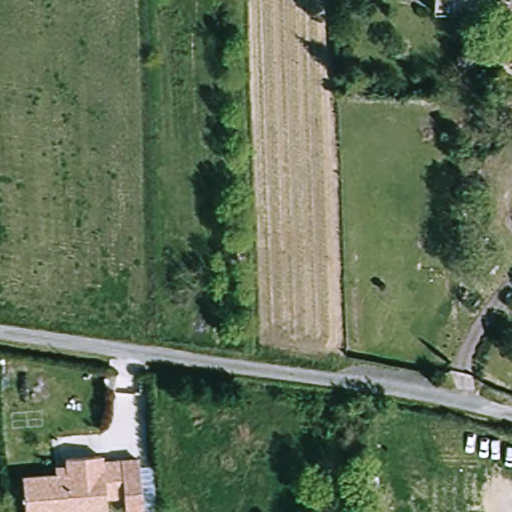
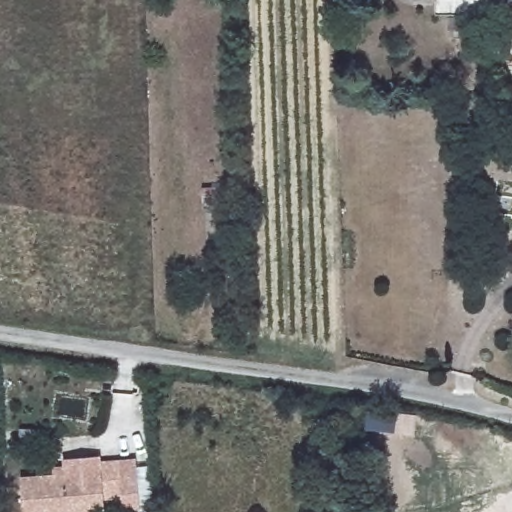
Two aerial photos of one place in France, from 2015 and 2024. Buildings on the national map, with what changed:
unchanged [(476,17),(434,15),(435,0),(477,0),(476,17)]
unchanged [(103,471),(102,462),(121,461),(123,497),(106,498),(106,512),(25,512),(23,475),(103,471)]

